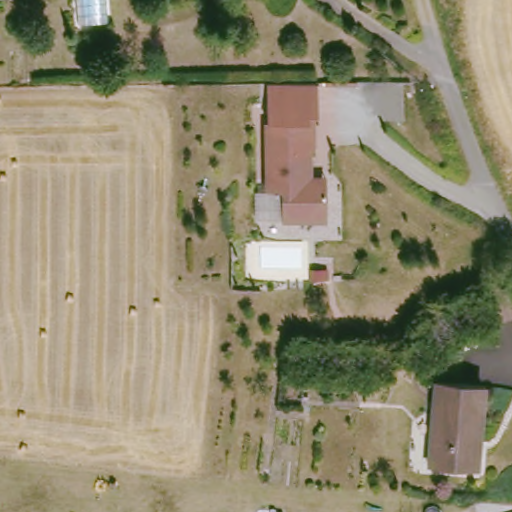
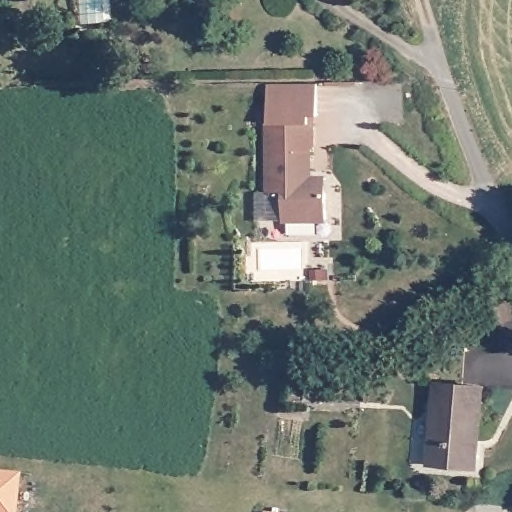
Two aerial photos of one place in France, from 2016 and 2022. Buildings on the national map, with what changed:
unchanged [(310,122),(271,122),(270,83),(319,84),(320,114),(312,115),(312,122),(318,121),(319,147),(311,147),(310,122)]
unchanged [(283,220),(280,190),(266,189),(265,122),(310,122),(312,177),(327,177),(329,218),(283,220)]
unchanged [(430,458),(437,378),(483,382),(478,436),(473,436),(470,462),(430,458)]
new [(0,512),(0,473),(14,474),(10,512),(0,512)]

